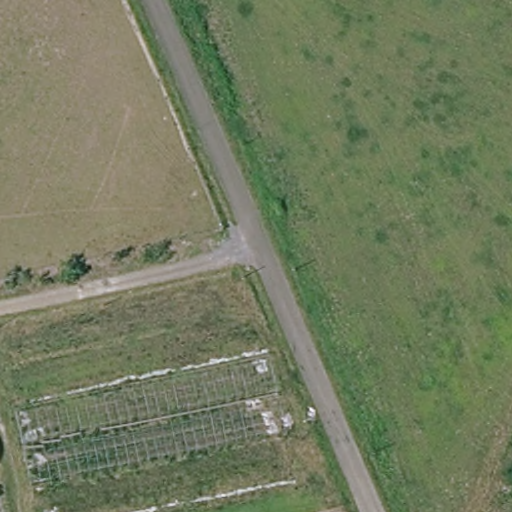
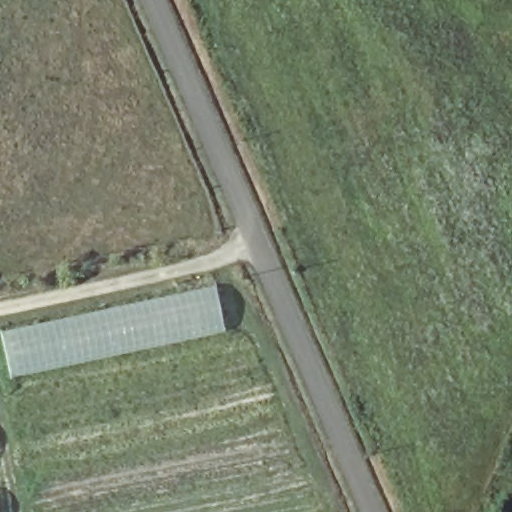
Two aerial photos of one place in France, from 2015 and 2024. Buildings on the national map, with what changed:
new [(0,340),(0,331),(214,285),(222,331),(8,378),(0,340)]
demolished [(128,512),(34,512),(13,410),(263,354),(291,477),(128,512)]

